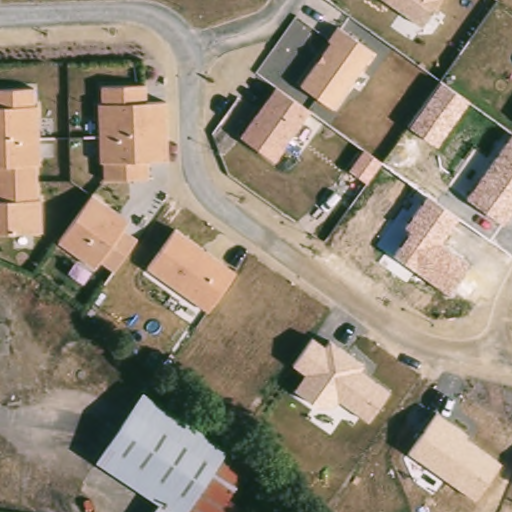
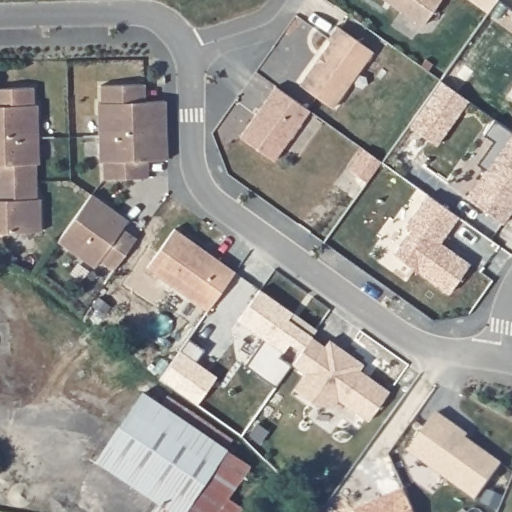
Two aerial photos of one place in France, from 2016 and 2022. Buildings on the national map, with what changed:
unchanged [(384,0),(441,0),(422,26),(384,0)]
unchanged [(469,0),(498,0),(489,14),(469,0)]
unchanged [(334,108),(300,84),(330,42),(327,40),(339,25),(375,52),(334,108)]
unchanged [(147,102),(167,101),(170,162),(149,162),(149,179),(104,181),(103,162),(99,162),(98,102),(102,102),(101,85),(147,83),(147,102)]
unchanged [(437,147),(409,128),(441,83),(469,102),(437,147)]
unchanged [(36,86),(35,105),(39,105),(41,165),(38,165),(39,199),(42,199),(43,232),(0,233),(0,87),(36,86)]
unchanged [(275,160),(241,137),(276,87),(310,110),(275,160)]
unchanged [(466,197),(512,132),(512,212),(504,223),(466,197)]
unchanged [(123,229),(137,240),(114,272),(100,262),(95,267),(57,242),(94,192),(130,219),(123,229)]
unchanged [(449,292),(394,255),(411,231),(403,226),(426,192),(459,217),(441,241),(471,263),(449,292)]
unchanged [(235,272),(208,312),(146,267),(174,228),(235,272)]
new [(318,330),(314,335),(303,352),(290,344),(280,357),(291,366),(277,387),(246,365),(265,340),(239,320),(261,290),(318,330)]
unchanged [(370,421),(340,402),(334,407),(316,407),(297,391),(306,375),(294,366),(314,335),(327,345),(330,340),(363,366),(360,370),(391,392),(370,421)]
new [(205,350),(197,361),(218,376),(198,405),(160,378),(189,339),(205,350)]
unchanged [(155,507),(92,465),(137,398),(155,410),(161,401),(228,447),(223,455),(246,471),(224,503),(236,512),(151,512),(155,507)]
unchanged [(475,501),(408,452),(435,415),(501,465),(475,501)]

